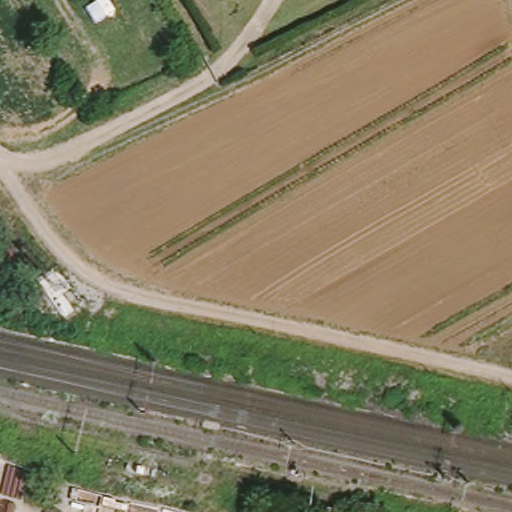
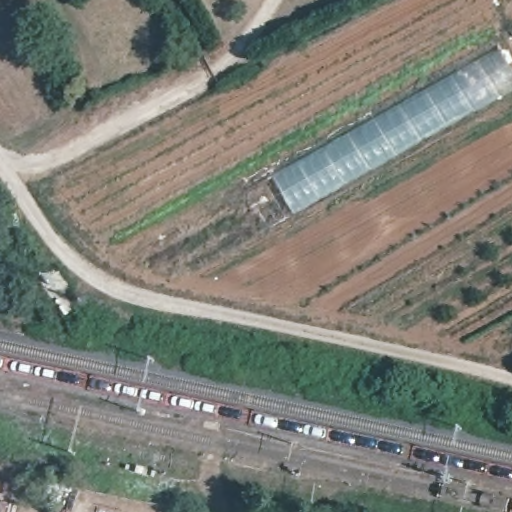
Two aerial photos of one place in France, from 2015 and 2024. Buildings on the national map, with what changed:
new [(250,192),(500,50),(512,70),(512,90),(269,229),(250,192)]
unchanged [(318,512),(320,504),(338,508),(337,512),(318,512)]

